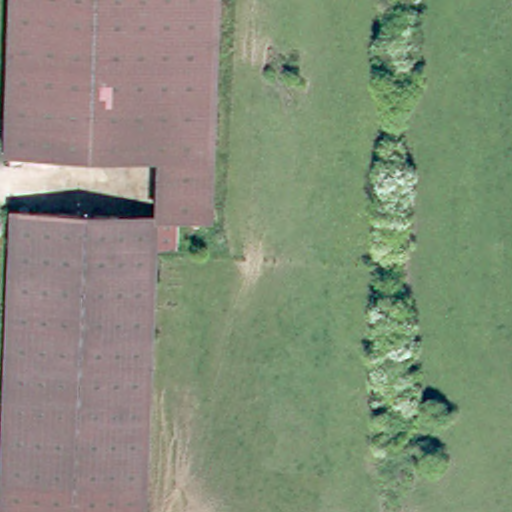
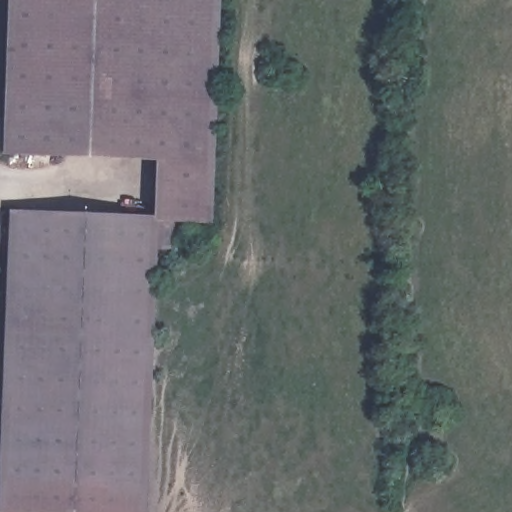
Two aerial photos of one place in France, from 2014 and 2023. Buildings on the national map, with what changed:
unchanged [(1,151),(6,0),(221,0),(213,217),(159,215),(162,159),(1,151)]
unchanged [(28,512),(1,511),(10,209),(159,215),(148,512),(28,512)]

